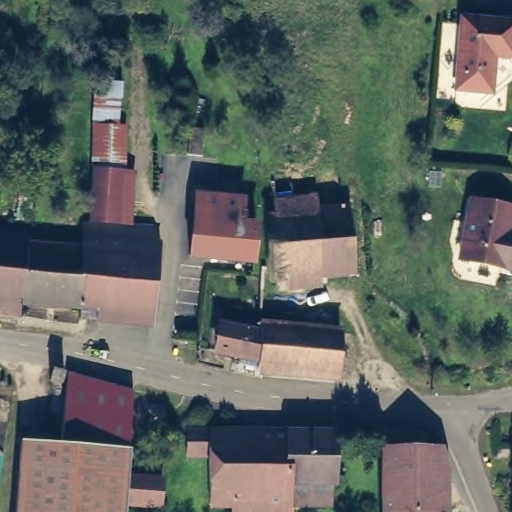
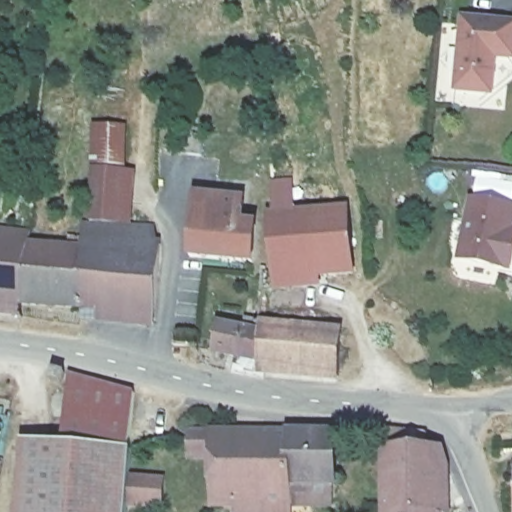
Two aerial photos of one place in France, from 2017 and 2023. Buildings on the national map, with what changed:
unchanged [(457,20),(457,18),(459,18),(510,22),(512,22),(512,32),(510,56),(510,58),(509,58),(490,56),(488,56),(488,58),(485,90),(485,92),(483,91),(452,89),(450,88),(450,86),(457,20)]
unchanged [(87,243),(94,81),(122,81),(119,126),(127,126),(125,172),(135,172),(132,225),(159,227),(158,253),(87,243)]
unchanged [(202,190),(244,194),(242,224),(240,224),(200,220),(202,190)]
unchanged [(282,193),(340,197),(337,226),(281,223),(280,223),(282,193)]
unchanged [(497,274),(499,266),(460,259),(457,259),(458,257),(467,206),(468,204),(470,204),(510,211),(512,211),(512,213),(509,232),(512,232),(512,266),(510,277),(497,274)]
unchanged [(192,220),(192,219),(194,219),(200,220),(240,224),(242,224),(242,225),(254,226),(255,226),(255,227),(250,266),(250,267),(249,267),(189,261),(188,261),(188,260),(192,220)]
unchanged [(277,222),(280,222),(280,223),(281,223),(337,226),(360,227),(362,227),(362,229),(356,284),(356,285),(355,285),(280,280),(269,279),(268,279),(268,278),(269,265),(269,264),(270,264),(272,264),(272,263),(275,223),(275,222),(277,222)]
unchanged [(17,239),(19,239),(18,243),(12,268),(7,293),(7,294),(5,308),(5,310),(3,309),(0,309),(0,236),(17,239)]
unchanged [(7,293),(12,268),(18,243),(70,252),(72,252),(72,251),(74,241),(87,243),(158,253),(162,254),(154,310),(154,311),(152,311),(100,307),(99,307),(99,308),(97,315),(97,316),(96,316),(81,314),(80,314),(80,313),(81,305),(81,304),(80,304),(9,295),(7,294),(7,293)]
unchanged [(257,377),(254,376),(252,376),(253,375),(255,362),(255,361),(254,360),(210,357),(209,356),(210,355),(214,334),(214,333),(215,333),(249,336),(250,336),(250,335),(250,331),(251,330),(252,330),(260,331),(261,331),(261,332),(260,334),(260,335),(262,335),(332,339),(334,339),(334,340),(340,384),(340,385),(339,385),(259,377),(258,377),(257,377)]
unchanged [(125,475),(162,477),(162,509),(129,507),(129,512),(15,512),(20,442),(59,444),(67,374),(134,392),(125,475)]
unchanged [(187,427),(203,427),(204,427),(205,426),(335,424),(336,424),(336,426),(327,486),(327,488),(326,488),(290,485),(288,485),(288,487),(288,510),(287,511),(205,505),(204,505),(204,504),(205,461),(205,460),(203,460),(186,458),(185,458),(185,456),(185,428),(185,427),(187,427)]
unchanged [(387,435),(432,434),(432,435),(432,444),(431,446),(432,446),(449,445),(449,447),(445,512),(385,512),(386,437),(386,435),(387,435)]

